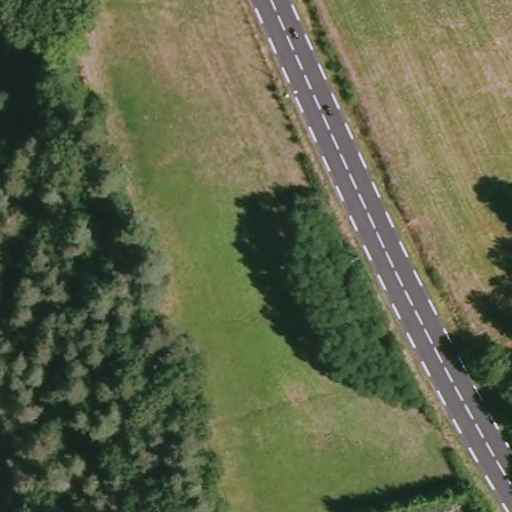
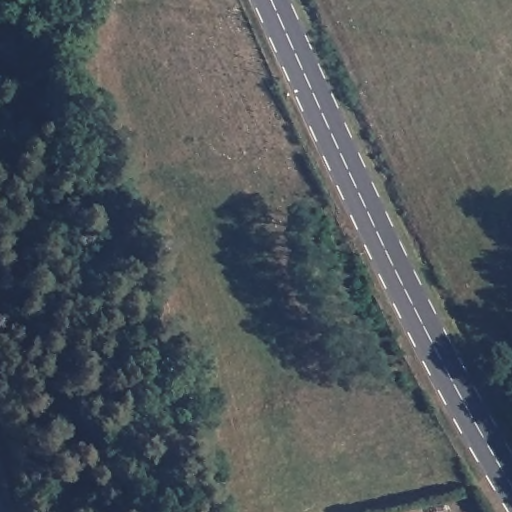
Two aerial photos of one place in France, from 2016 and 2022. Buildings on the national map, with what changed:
[]

